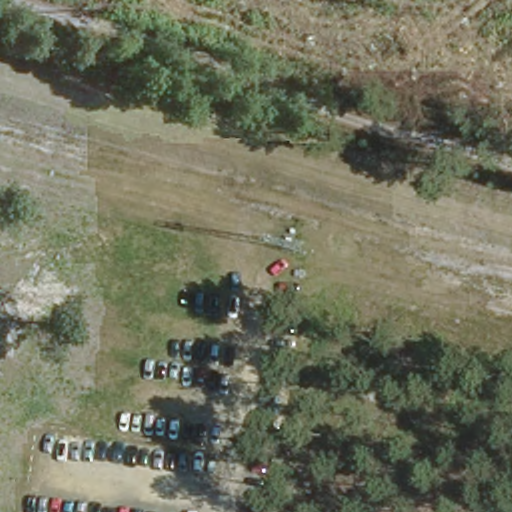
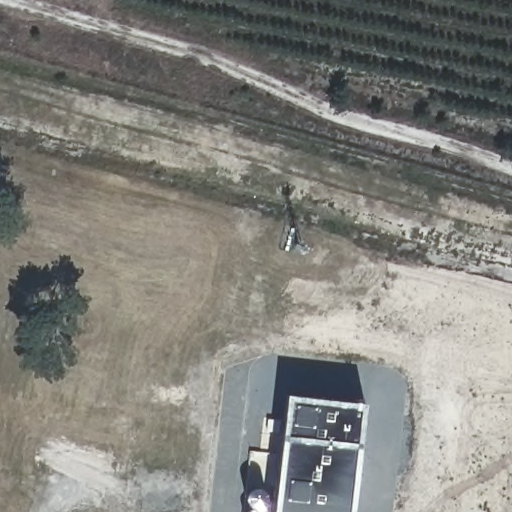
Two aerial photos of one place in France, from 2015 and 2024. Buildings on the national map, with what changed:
new [(371,408),(358,512),(279,512),(294,398),(371,408)]

